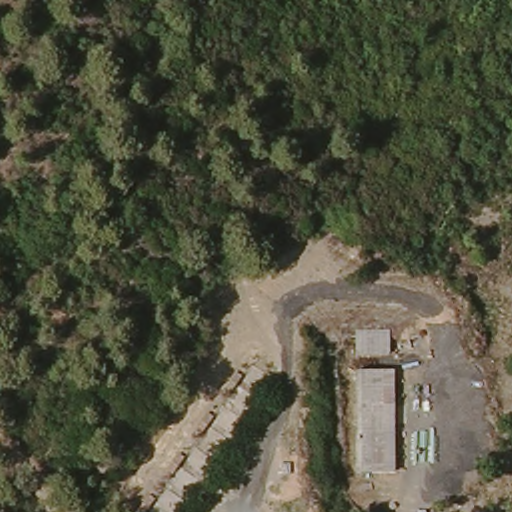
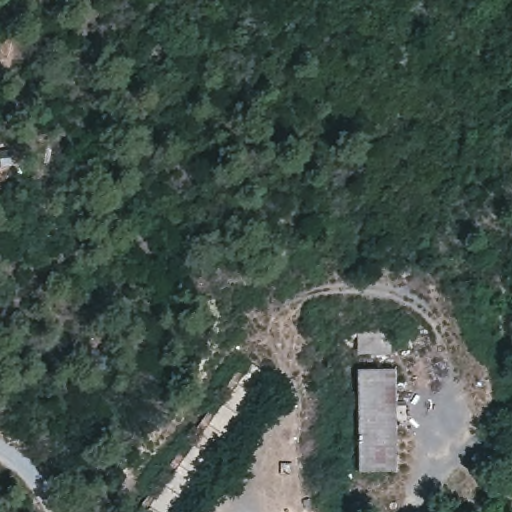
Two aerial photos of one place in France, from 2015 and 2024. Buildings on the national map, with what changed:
unchanged [(352,372),(397,373),(396,476),(355,473),(352,372)]

